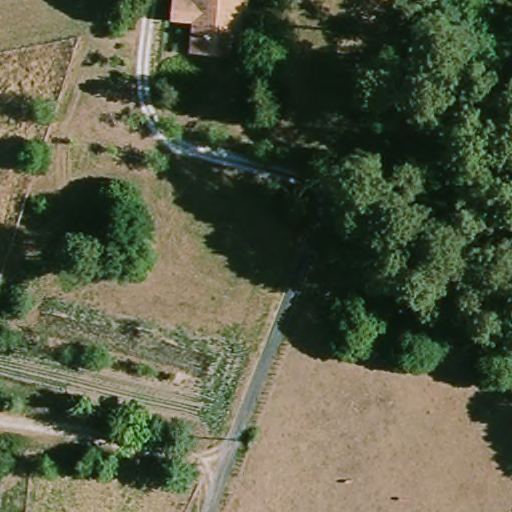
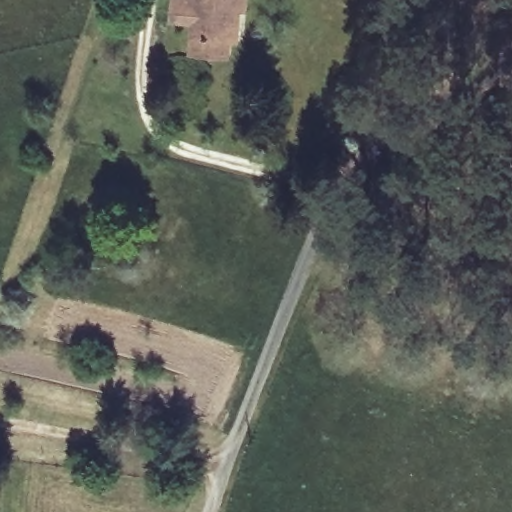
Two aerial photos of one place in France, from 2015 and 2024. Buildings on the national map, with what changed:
unchanged [(191,53),(192,21),(171,20),(171,0),(247,0),(247,8),(240,8),(238,41),(233,41),(232,55),(215,54),(191,53)]

